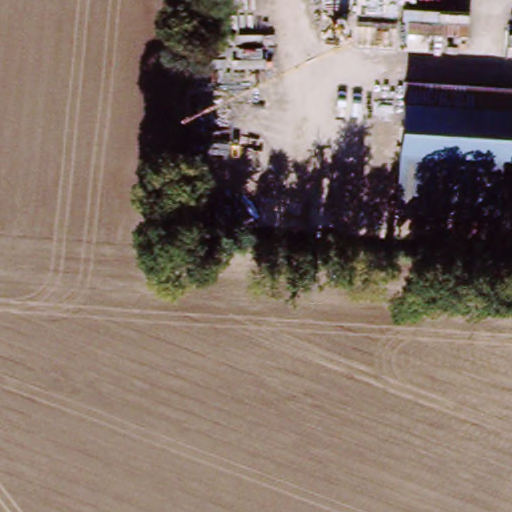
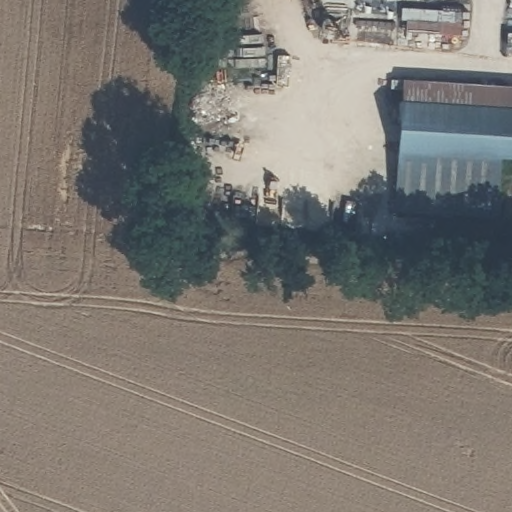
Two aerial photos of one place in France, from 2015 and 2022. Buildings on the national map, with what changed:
unchanged [(399,99),(401,77),(512,86),(512,106),(399,99)]
unchanged [(498,152),(494,214),(389,206),(399,99),(512,106),(512,153),(498,152)]

